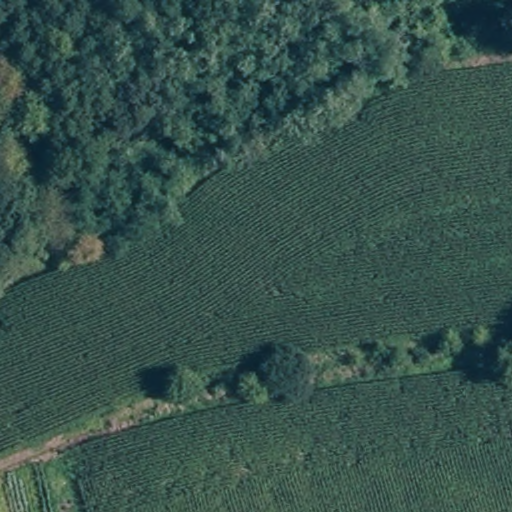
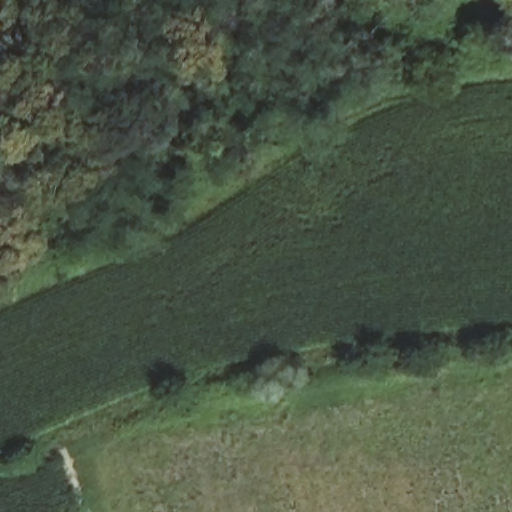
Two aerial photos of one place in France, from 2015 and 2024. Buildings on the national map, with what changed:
[]

